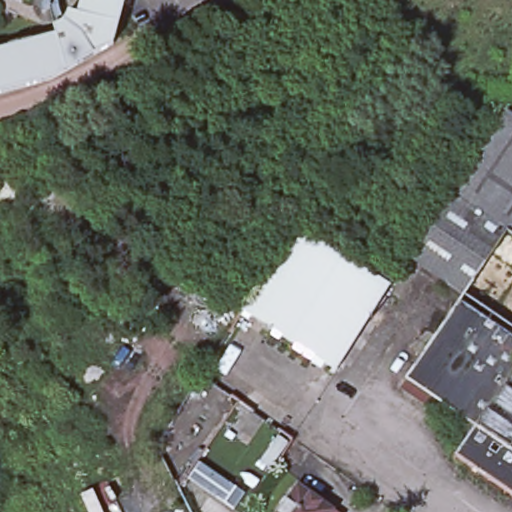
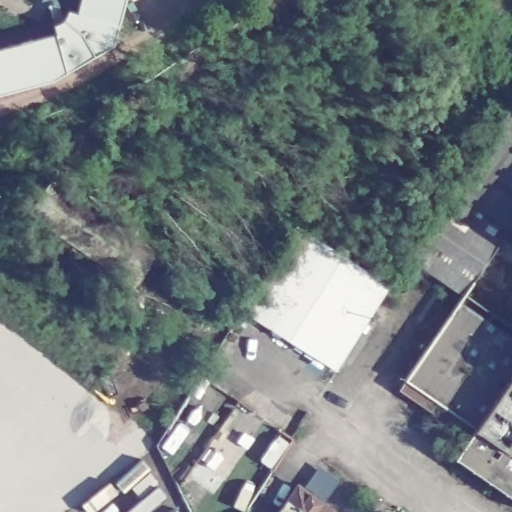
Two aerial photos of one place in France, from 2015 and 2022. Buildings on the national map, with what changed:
unchanged [(55,28),(53,19),(55,19),(63,14),(67,10),(69,4),(77,7),(79,0),(123,0),(113,38),(52,73),(0,87),(0,43),(55,28)]
unchanged [(507,111),(512,115),(512,234),(507,230),(463,294),(407,255),(507,111)]
unchanged [(52,229),(27,212),(37,199),(50,178),(157,251),(133,285),(52,229)]
unchanged [(242,309),(296,225),(390,284),(336,368),(242,309)]
unchanged [(507,230),(512,234),(512,496),(455,456),(470,434),(400,386),(405,378),(463,294),(507,230)]
unchanged [(199,461),(244,493),(233,508),(188,477),(199,461)]
unchanged [(333,509),(337,512),(278,512),(298,484),(333,509)]

